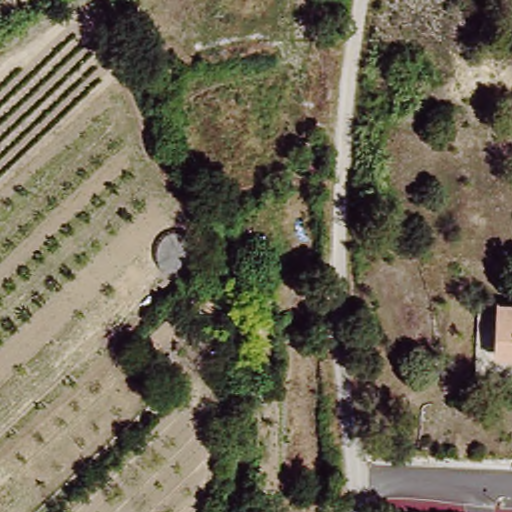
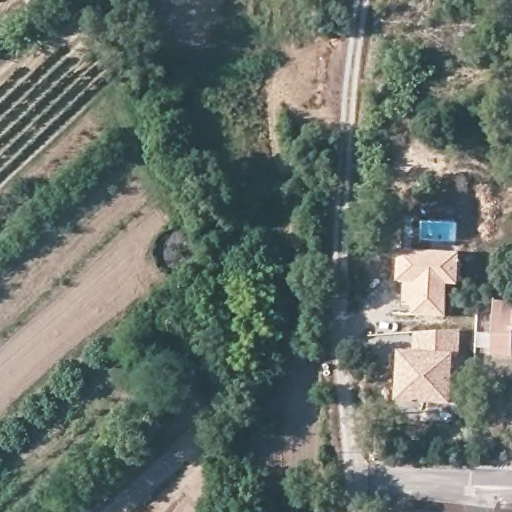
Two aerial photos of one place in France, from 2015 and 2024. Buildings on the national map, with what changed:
new [(397,251),(460,252),(459,285),(447,285),(446,316),(413,315),(413,309),(402,309),(402,283),(396,282),(397,251)]
unchanged [(487,344),(491,304),(512,305),(512,355),(506,355),(507,345),(487,344)]
new [(413,351),(414,331),(460,330),(460,354),(456,353),(455,406),(396,404),(398,351),(413,351)]

